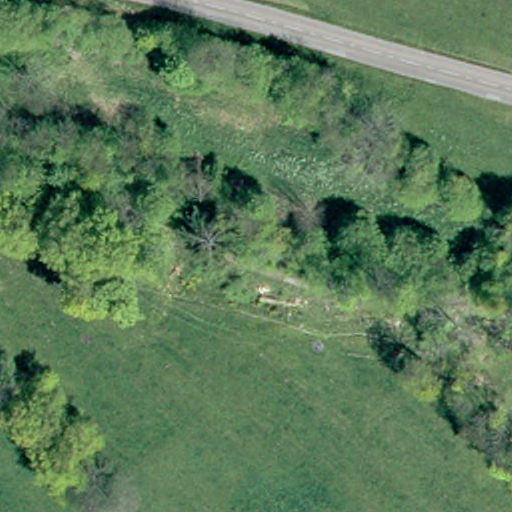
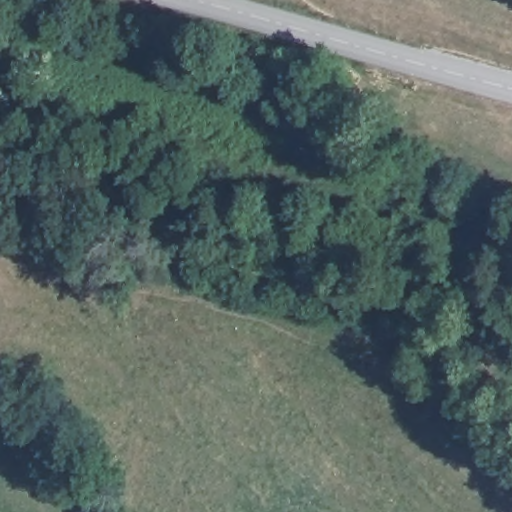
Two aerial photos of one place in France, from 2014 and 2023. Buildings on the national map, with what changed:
[]

